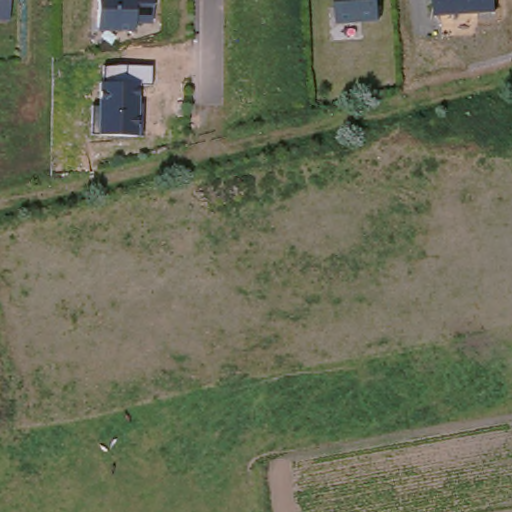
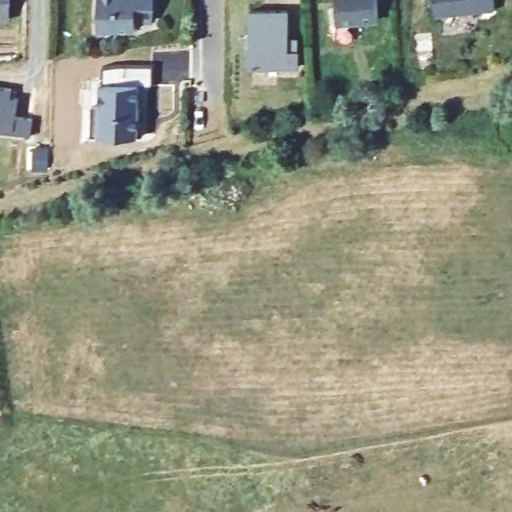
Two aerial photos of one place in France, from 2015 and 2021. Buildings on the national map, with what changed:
unchanged [(8,21),(0,21),(0,0),(9,0),(8,21)]
unchanged [(97,0),(152,0),(152,24),(134,24),(134,32),(96,31),(97,0)]
unchanged [(375,26),(334,29),(332,0),(373,0),(375,26)]
unchanged [(436,17),(434,0),(491,0),(493,11),(436,17)]
new [(288,9),(288,36),(299,37),(299,69),(248,67),(249,7),(288,9)]
unchanged [(91,135),(92,105),(99,106),(101,67),(151,67),(149,85),(138,85),(136,136),(91,135)]
new [(11,89),(9,98),(18,100),(16,117),(32,120),(29,137),(0,132),(0,87),(11,89)]

